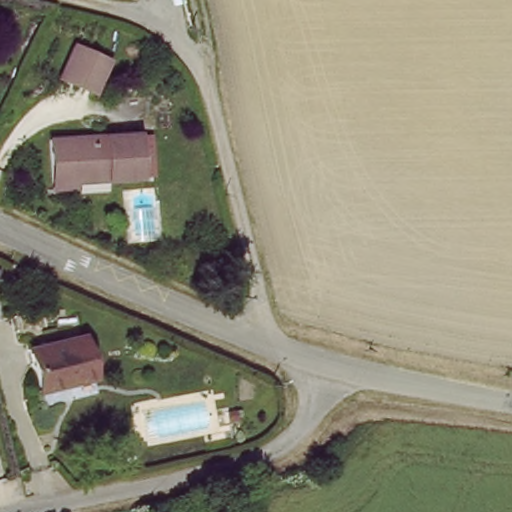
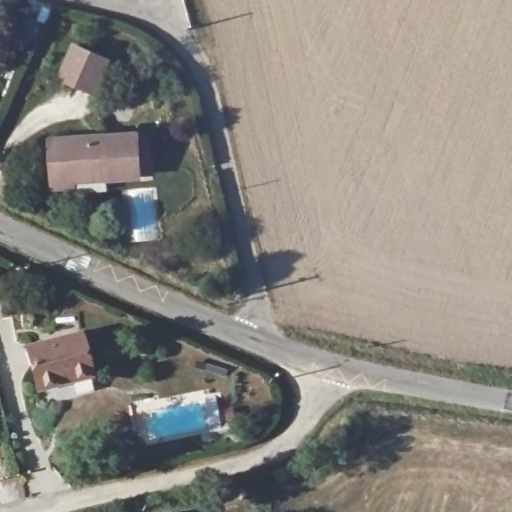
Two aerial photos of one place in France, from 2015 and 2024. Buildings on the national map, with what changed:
unchanged [(80,46),(115,61),(101,91),(66,75),(80,46)]
unchanged [(153,178),(61,182),(58,140),(150,132),(153,178)]
unchanged [(93,389),(74,394),(73,387),(38,397),(28,359),(81,346),(93,389)]

